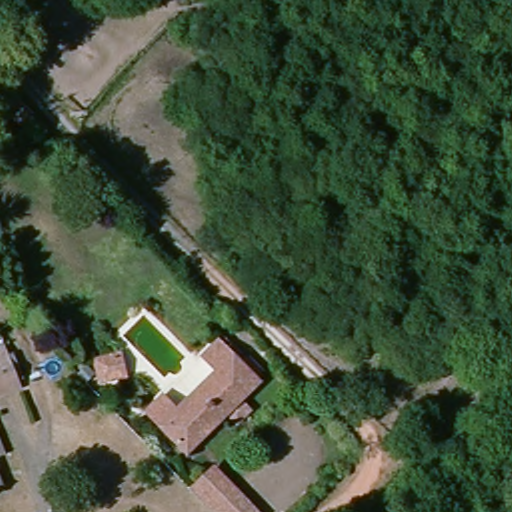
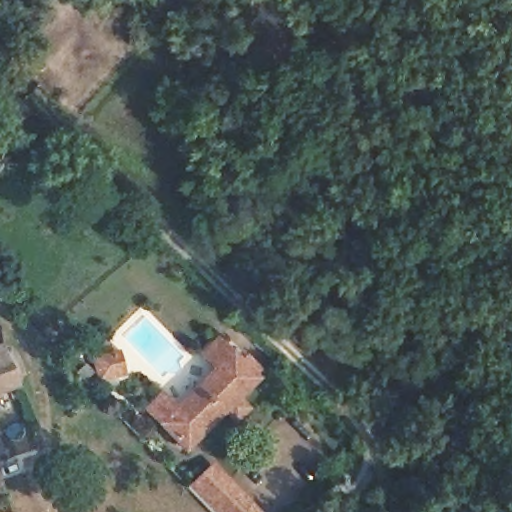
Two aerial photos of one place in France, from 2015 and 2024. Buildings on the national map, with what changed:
unchanged [(6,342),(10,353),(15,351),(22,369),(18,371),(22,382),(0,391),(0,345),(6,342)]
unchanged [(152,406),(168,393),(184,406),(223,368),(211,355),(225,342),(263,380),(228,412),(189,447),(152,406)]
unchanged [(11,440),(12,443),(13,449),(0,454),(0,417),(11,440)]
unchanged [(218,468),(260,512),(220,512),(196,487),(218,468)]
unchanged [(0,481),(0,469),(1,470),(4,480),(0,481)]

